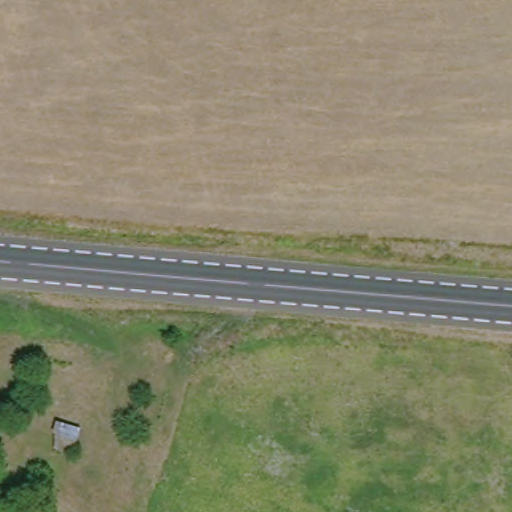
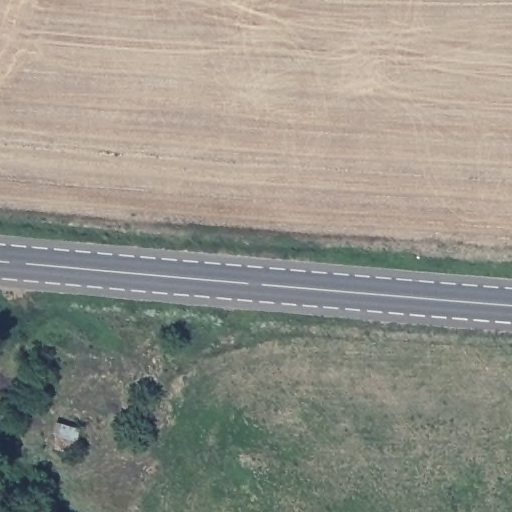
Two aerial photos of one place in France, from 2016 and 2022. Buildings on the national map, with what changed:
unchanged [(61,443),(56,442),(61,425),(88,433),(79,459),(58,454),(61,443)]

